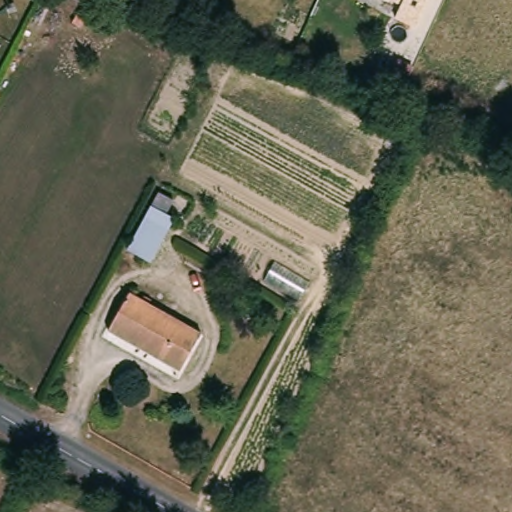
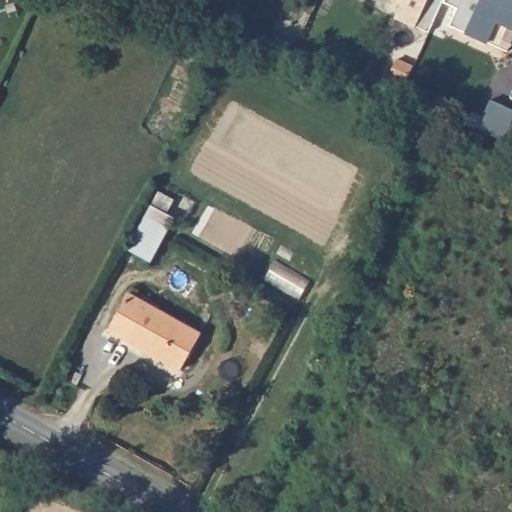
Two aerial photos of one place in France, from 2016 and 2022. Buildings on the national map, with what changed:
unchanged [(416,29),(396,20),(402,6),(388,0),(430,0),(416,29)]
new [(446,0),(512,0),(512,31),(497,24),(488,45),(450,28),(458,11),(444,5),(446,0)]
unchanged [(122,254),(153,196),(169,205),(162,219),(170,223),(146,267),(122,254)]
unchanged [(108,330),(129,293),(201,333),(180,370),(108,330)]

